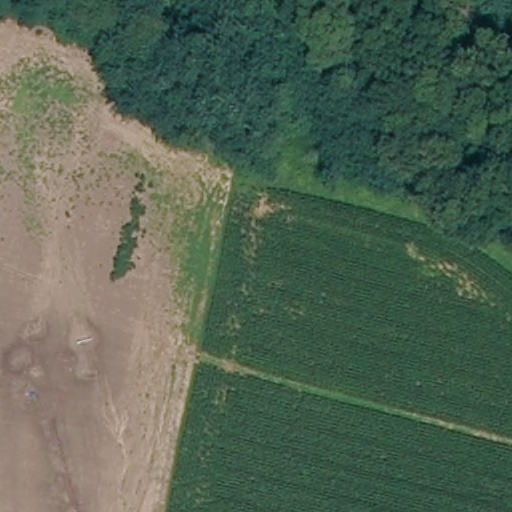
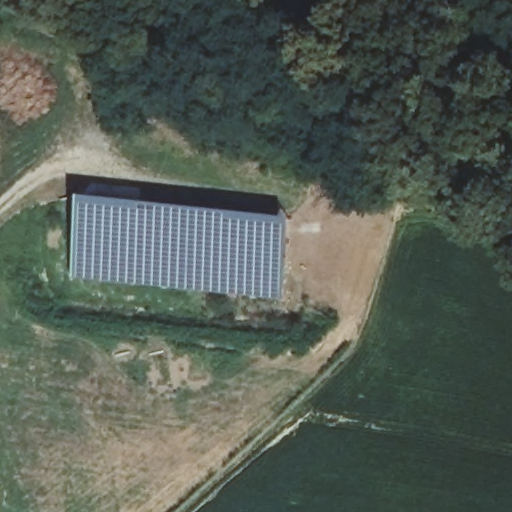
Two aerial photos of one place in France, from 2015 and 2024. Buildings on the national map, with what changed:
new [(282,296),(73,277),(81,196),(288,218),(282,296)]

